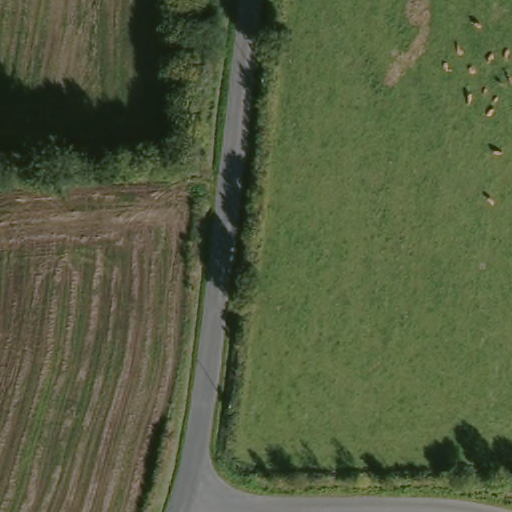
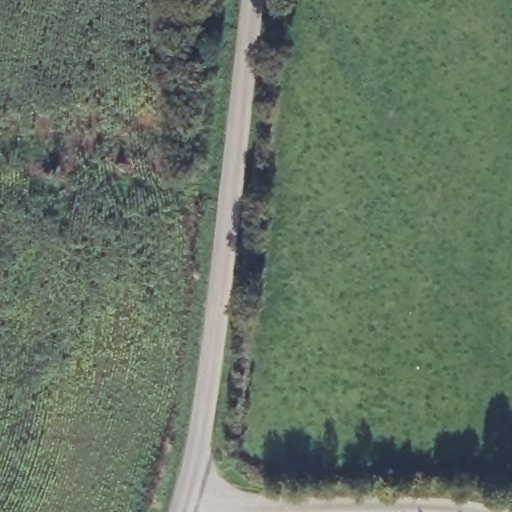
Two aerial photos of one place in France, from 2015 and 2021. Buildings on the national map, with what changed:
unchanged [(182,0),(210,0),(209,12),(181,10),(182,0)]

